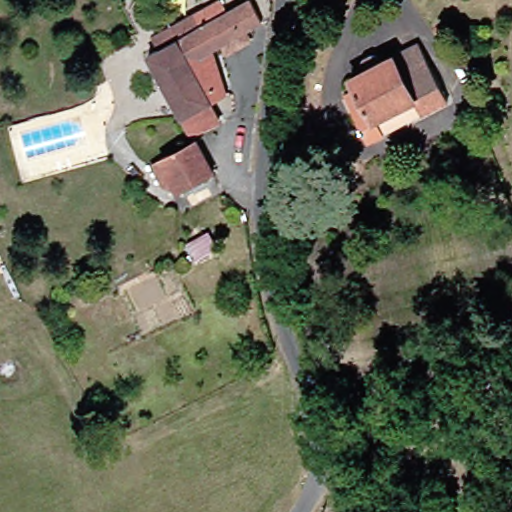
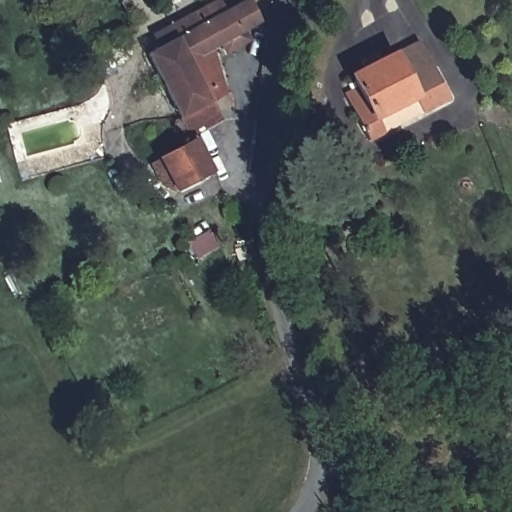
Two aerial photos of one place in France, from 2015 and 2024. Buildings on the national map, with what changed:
unchanged [(229,112),(200,128),(193,114),(159,46),(202,22),(192,2),(197,0),(228,0),(230,4),(238,0),(259,0),(269,18),(252,27),(255,35),(232,48),(227,41),(211,50),(233,90),(240,100),(226,107),(229,112)]
unchanged [(362,48),(370,44),(375,45),(379,52),(417,32),(447,90),(366,131),(342,85),(355,78),(350,67),(362,60),(359,54),(362,48)]
unchanged [(210,162),(177,183),(157,147),(191,129),(210,162)]
unchanged [(283,165),(292,166),(291,176),(282,176),(283,165)]

